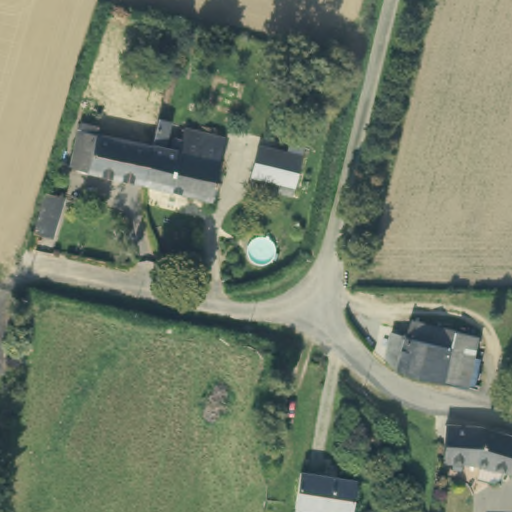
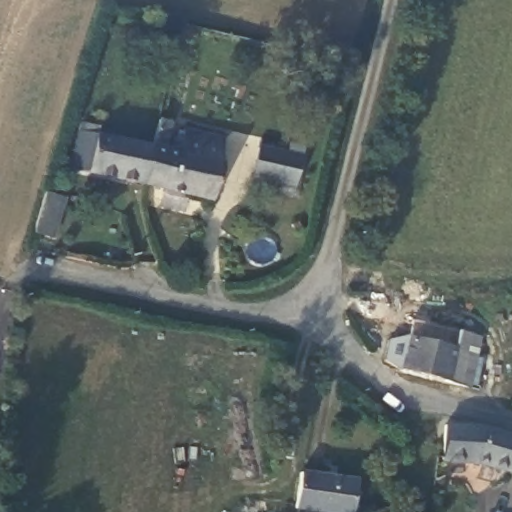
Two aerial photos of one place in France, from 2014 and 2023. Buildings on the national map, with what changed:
unchanged [(165,157),(178,160),(184,134),(186,123),(225,132),(222,142),(208,205),(142,189),(151,152),(157,124),(171,127),(165,157)]
unchanged [(67,172),(76,135),(151,152),(142,189),(67,172)]
unchanged [(285,151),(287,142),(302,145),(291,194),(276,190),(278,181),(249,174),(256,145),(285,151)]
unchanged [(65,197),(54,237),(35,231),(46,192),(65,197)]
unchanged [(387,335),(412,340),(415,325),(480,337),(470,390),(404,377),(382,358),(387,335)]
unchanged [(506,468),(438,461),(440,447),(441,428),(491,435),(490,442),(508,445),(506,468)]
unchanged [(291,511),(295,476),(323,480),(352,483),(348,512),(298,512),(291,511)]

